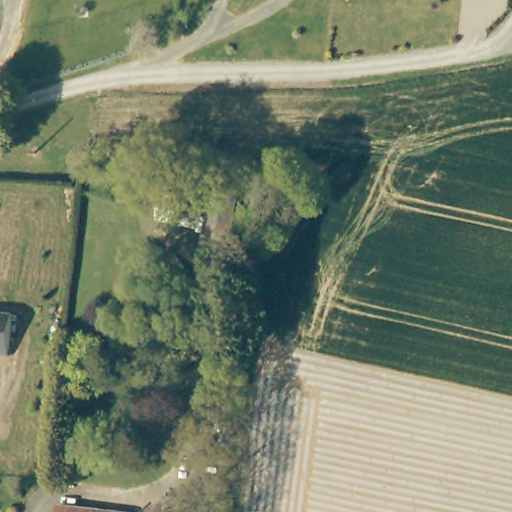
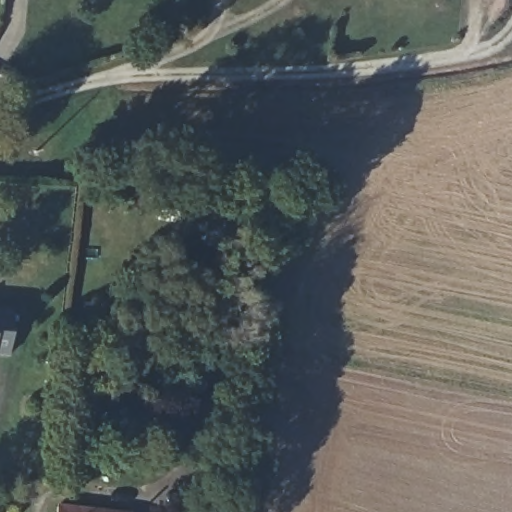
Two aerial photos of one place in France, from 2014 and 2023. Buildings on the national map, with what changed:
unchanged [(237,248),(209,244),(216,185),(245,188),(237,248)]
unchanged [(210,229),(167,224),(170,199),(212,204),(210,229)]
unchanged [(0,307),(15,309),(10,352),(0,350),(0,307)]
unchanged [(61,504),(111,512),(60,512),(61,504)]

